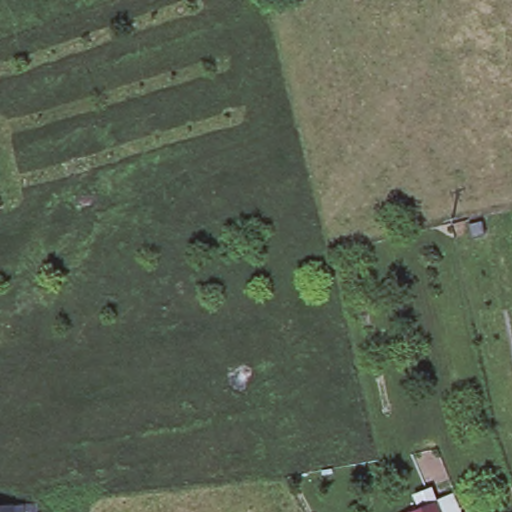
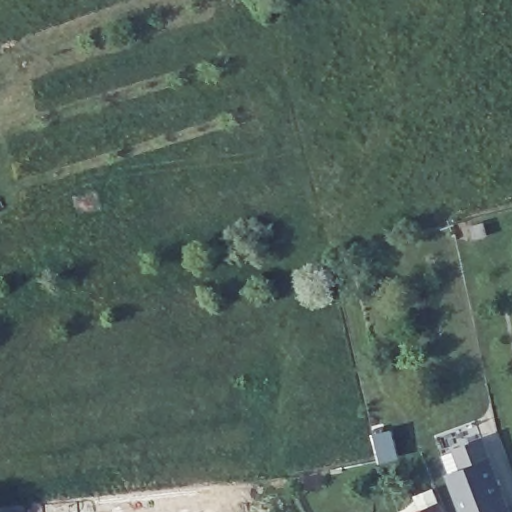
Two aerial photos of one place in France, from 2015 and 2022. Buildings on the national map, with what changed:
new [(451,474),(444,454),(458,449),(483,439),(511,512),(465,512),(451,474)]
unchanged [(431,504),(435,512),(415,512),(431,504)]
unchanged [(15,507),(15,512),(0,512),(0,509),(15,507)]

